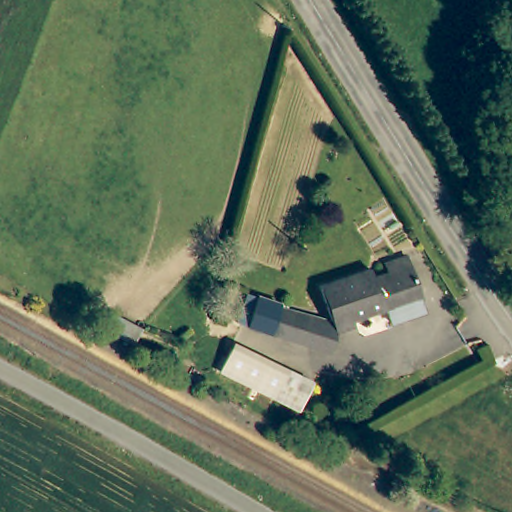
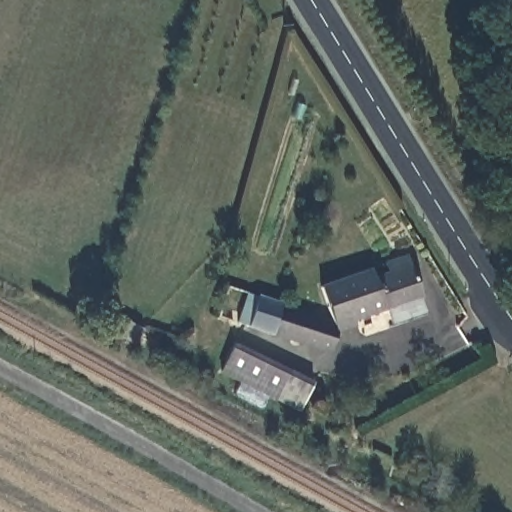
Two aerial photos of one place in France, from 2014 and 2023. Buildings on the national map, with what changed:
unchanged [(255,307),(247,303),(251,296),(284,306),(283,309),(330,321),(320,285),(369,268),(373,278),(389,272),(385,263),(407,255),(422,297),(354,320),(356,328),(338,334),(333,350),(278,334),(252,327),(255,307)]
unchanged [(215,373),(231,345),(282,368),(269,399),(215,373)]
unchanged [(299,413),(294,415),(276,407),(282,368),(304,375),(299,413)]

